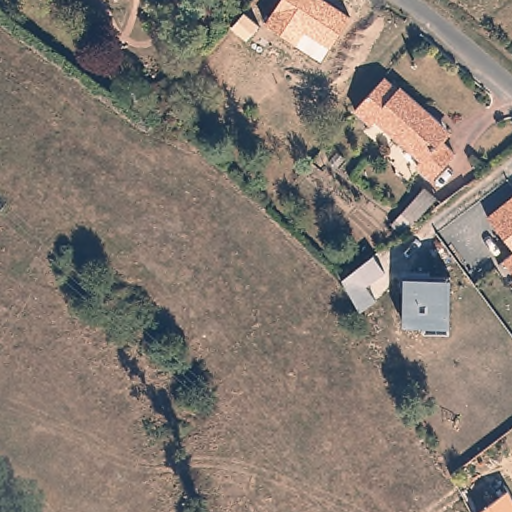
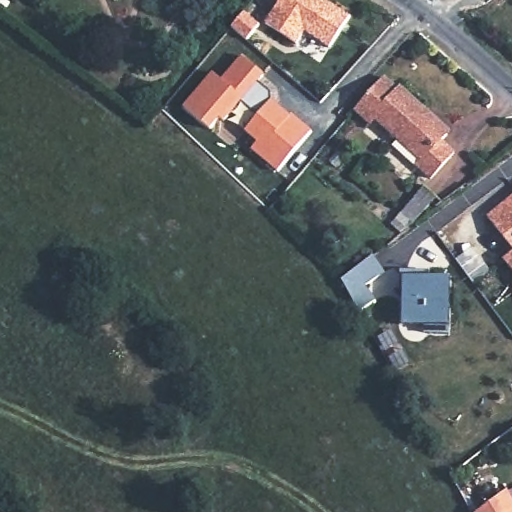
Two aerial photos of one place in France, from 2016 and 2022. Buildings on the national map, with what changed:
unchanged [(329,48),(305,34),(297,45),(264,22),(280,0),(327,0),(349,15),(329,48)]
new [(219,72),(227,80),(248,55),(269,74),(264,81),(277,92),(278,100),(295,115),(297,114),(318,131),(284,171),(258,149),(264,141),(251,131),(264,116),(247,101),(230,121),(225,117),(215,129),(189,106),(219,72)]
unchanged [(367,89),(376,80),(393,93),(396,90),(424,114),(421,117),(443,135),(438,141),(449,150),(429,176),(414,165),(419,160),(373,121),(368,126),(349,110),(367,89)]
unchanged [(488,215),(512,196),(512,247),(488,215)]
unchanged [(504,257),(512,251),(512,270),(504,257)]
unchanged [(386,273),(366,286),(377,299),(360,312),(341,280),(373,255),(386,273)]
unchanged [(449,327),(403,326),(403,277),(449,279),(449,327)]
unchanged [(478,512),(508,490),(512,497),(512,512),(478,512)]

